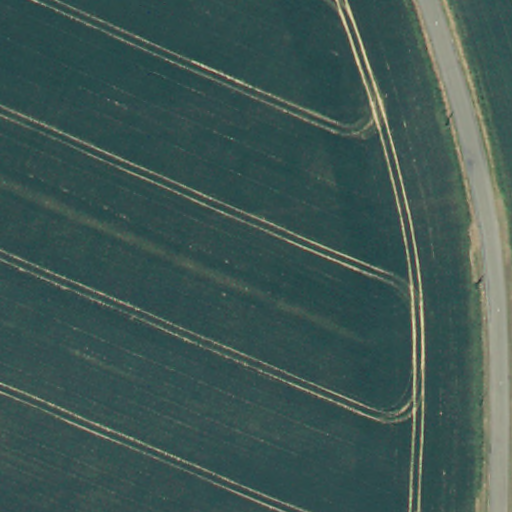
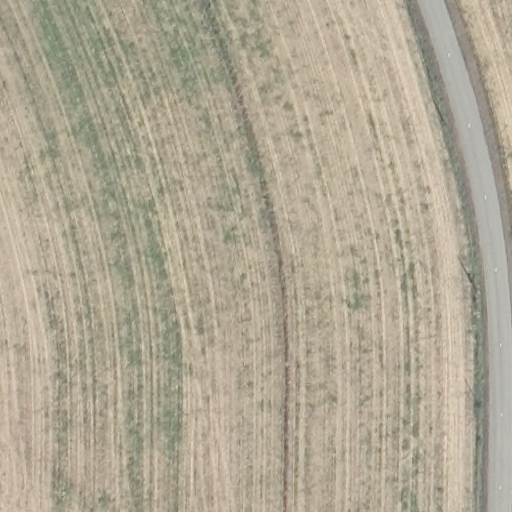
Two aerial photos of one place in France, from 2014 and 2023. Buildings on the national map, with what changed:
[]

